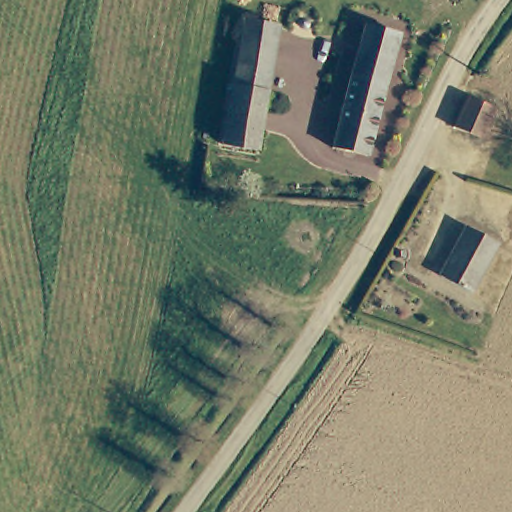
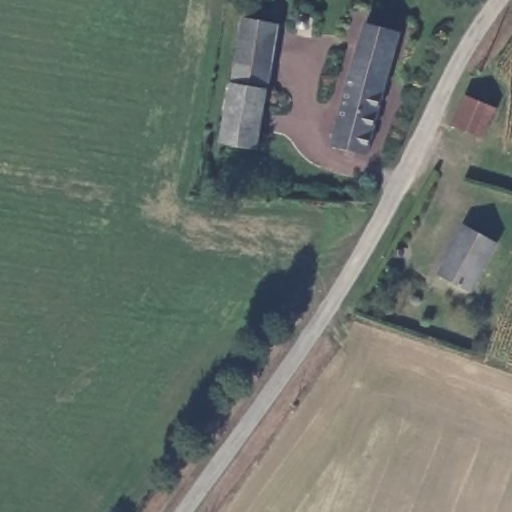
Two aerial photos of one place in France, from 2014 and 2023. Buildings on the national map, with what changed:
unchanged [(260,95),(226,90),(237,24),(271,29),(260,95)]
unchanged [(341,83),(359,30),(400,39),(383,90),(367,159),(329,149),(341,83)]
unchanged [(251,155),(216,149),(226,90),(260,95),(251,155)]
unchanged [(460,101),(490,114),(476,144),(446,131),(460,101)]
unchanged [(491,248),(464,297),(432,280),(459,231),(491,248)]

